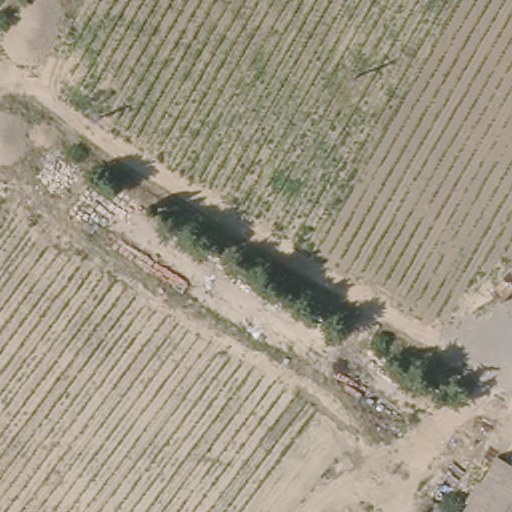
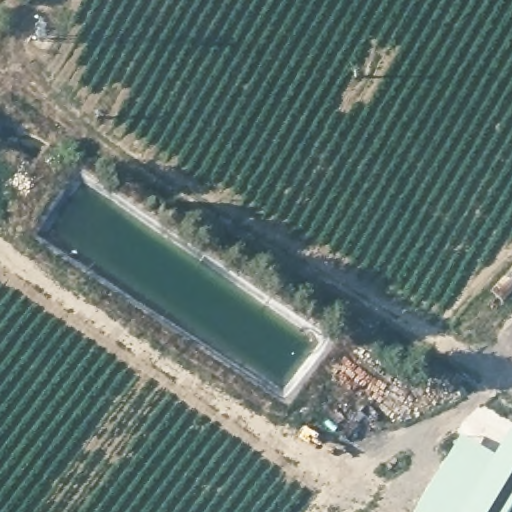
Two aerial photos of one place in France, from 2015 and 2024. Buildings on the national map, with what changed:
new [(495,455),(512,431),(512,466),(497,457),(463,512),(417,512),(462,437),(495,455)]
unchanged [(497,457),(512,466),(512,512),(463,512),(497,457)]

